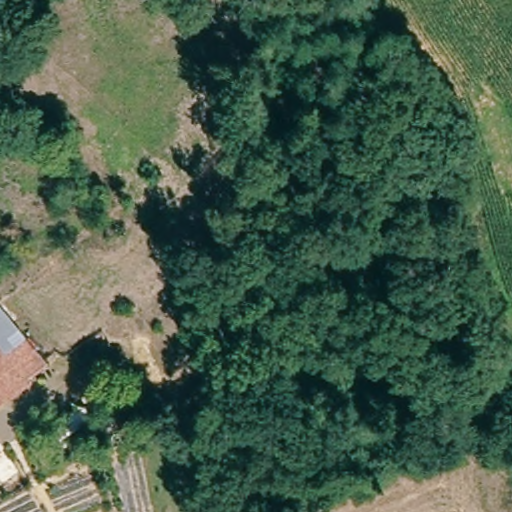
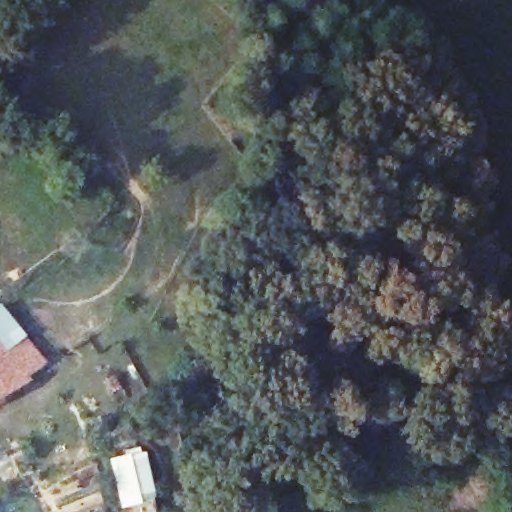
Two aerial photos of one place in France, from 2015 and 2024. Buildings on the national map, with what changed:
unchanged [(20,371),(0,341),(0,301),(1,300),(39,360),(20,371)]
unchanged [(25,378),(0,397),(0,341),(20,371),(25,378)]
new [(155,490),(142,503),(121,508),(110,459),(145,451),(155,490)]

